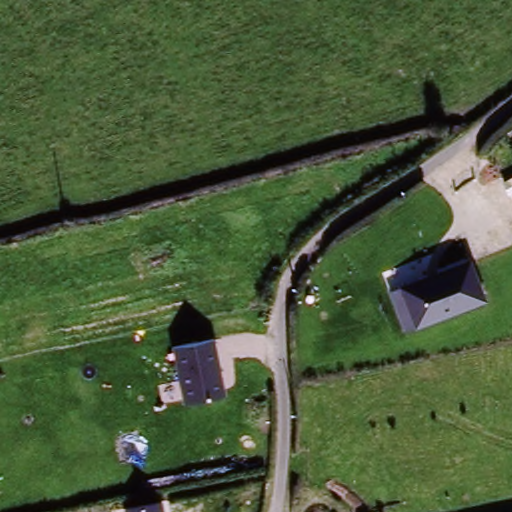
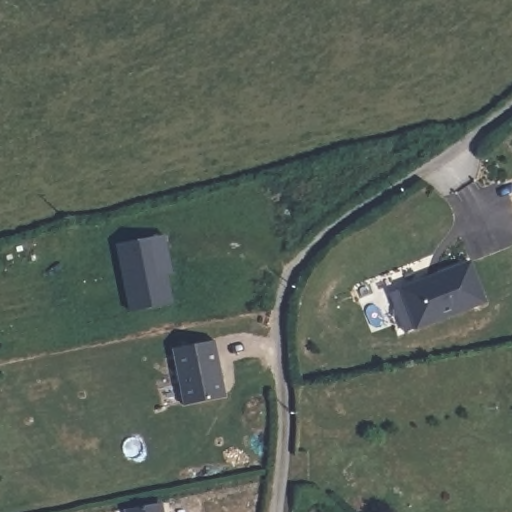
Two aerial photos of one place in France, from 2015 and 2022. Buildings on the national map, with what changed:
new [(174,273),(167,274),(173,304),(128,314),(115,244),(165,234),(174,273)]
unchanged [(471,258),(486,301),(412,328),(397,287),(471,258)]
unchanged [(213,339),(225,400),(185,407),(172,348),(213,339)]
unchanged [(161,504),(163,512),(123,512),(161,504)]

